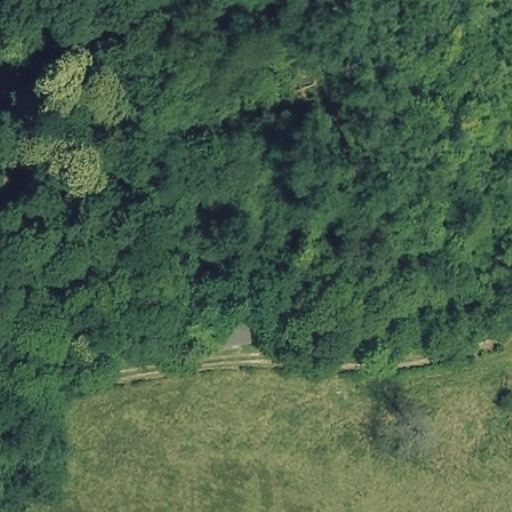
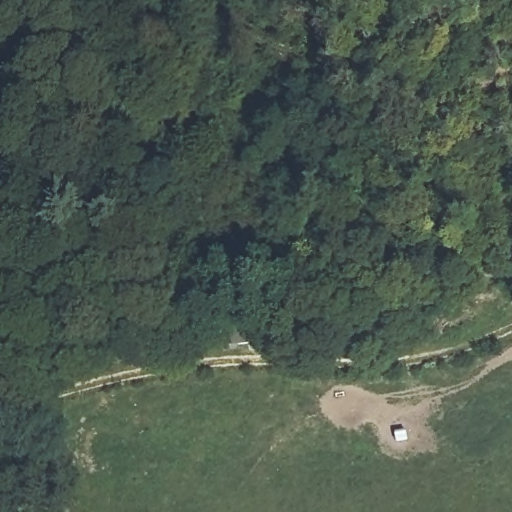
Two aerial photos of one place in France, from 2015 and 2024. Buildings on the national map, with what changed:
unchanged [(253,341),(220,346),(221,313),(254,309),(253,341)]

